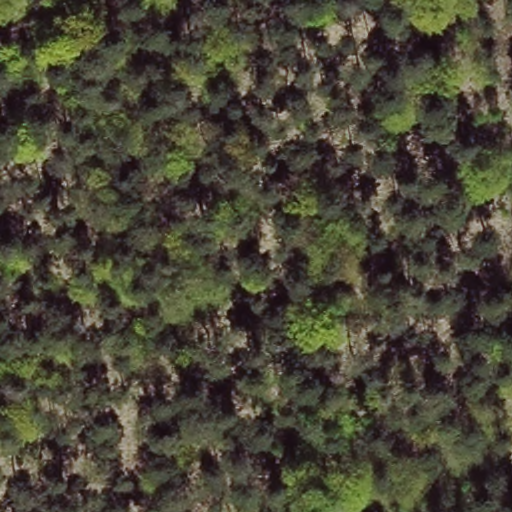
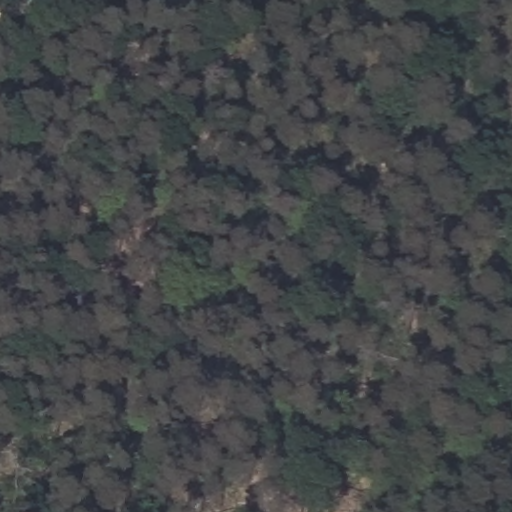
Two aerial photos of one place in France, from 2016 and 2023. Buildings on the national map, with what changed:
[]

